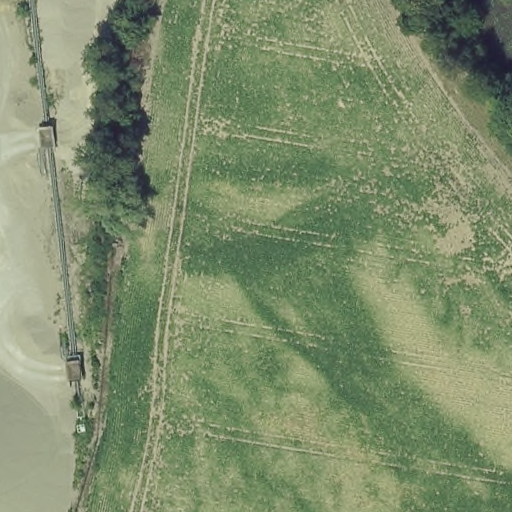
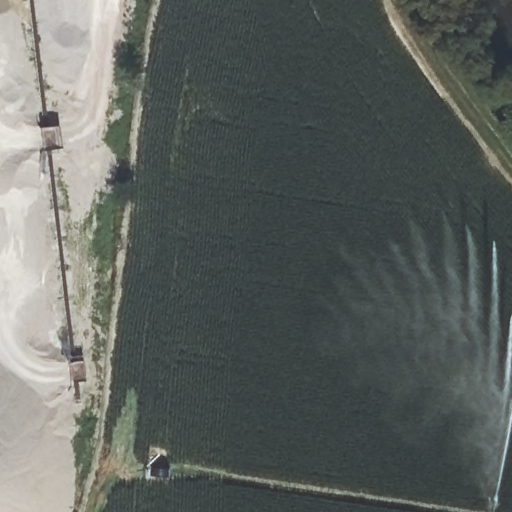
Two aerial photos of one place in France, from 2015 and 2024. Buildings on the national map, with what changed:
[]

